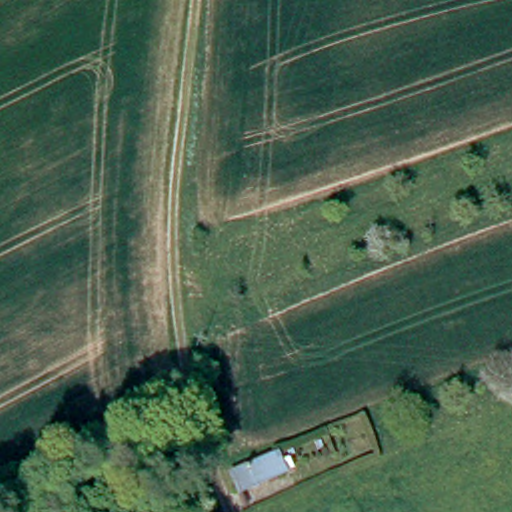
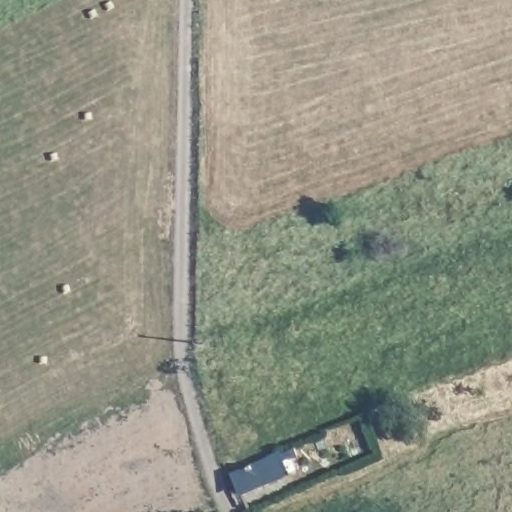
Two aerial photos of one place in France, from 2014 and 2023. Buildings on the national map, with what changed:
unchanged [(231,478),(278,456),(286,474),(240,496),(231,478)]

